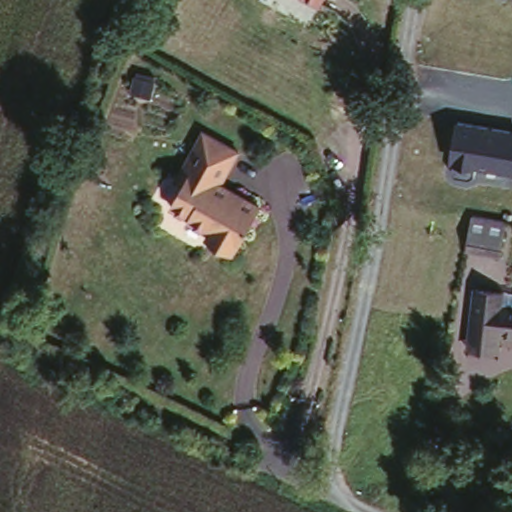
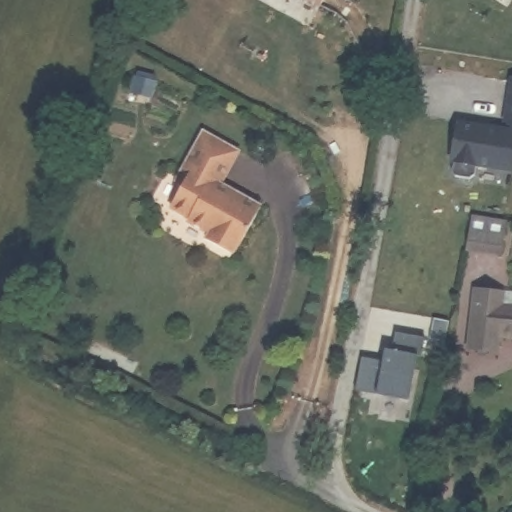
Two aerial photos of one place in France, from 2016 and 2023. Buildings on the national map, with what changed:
unchanged [(309,0),(324,0),(321,6),(309,0)]
unchanged [(101,92),(121,96),(117,112),(98,107),(101,92)]
unchanged [(512,172),(476,169),(473,177),(448,172),(458,120),(512,128),(512,172)]
unchanged [(234,155),(217,188),(229,194),(260,209),(238,252),(237,252),(234,258),(206,244),(210,237),(187,227),(189,222),(169,212),(180,190),(173,186),(181,171),(198,136),(234,155)]
unchanged [(501,255),(468,250),(474,212),(507,218),(501,255)]
unchanged [(465,291),(467,281),(490,284),(489,289),(512,291),(512,336),(497,335),(496,349),(459,344),(461,331),(465,291)]
new [(359,356),(380,360),(382,347),(390,348),(393,331),(423,337),(420,355),(416,353),(407,398),(353,388),(359,356)]

